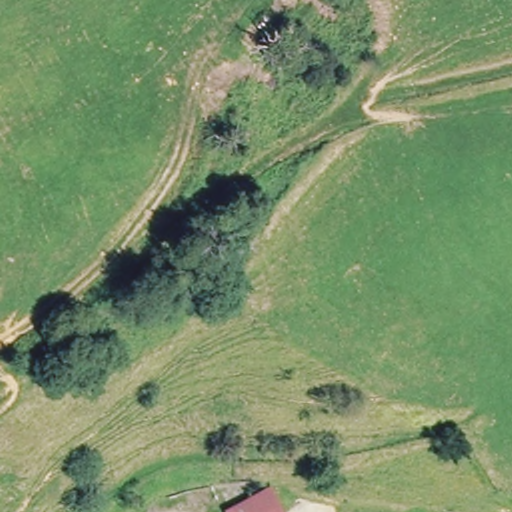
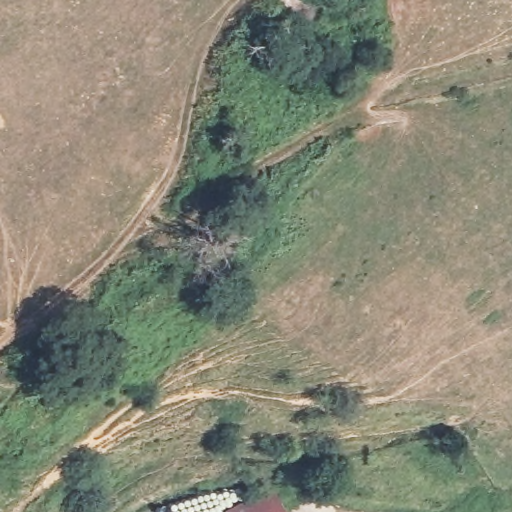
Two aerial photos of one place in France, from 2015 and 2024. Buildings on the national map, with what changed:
unchanged [(265,488),(279,512),(223,512),(265,488)]

